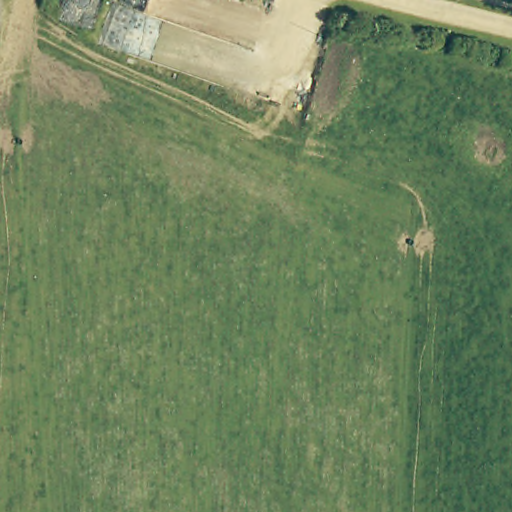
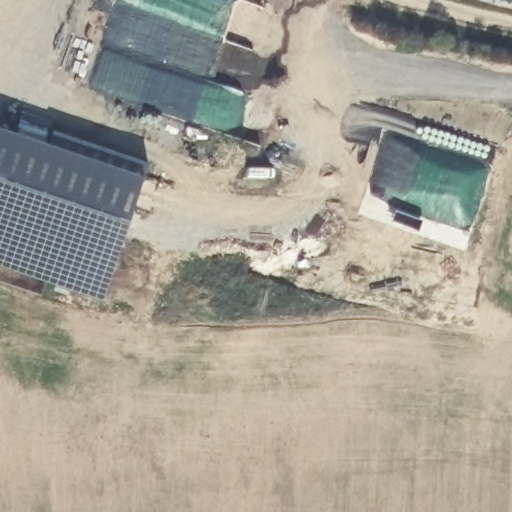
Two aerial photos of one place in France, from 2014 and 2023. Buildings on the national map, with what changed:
new [(0,265),(0,129),(146,179),(104,300),(0,265)]

